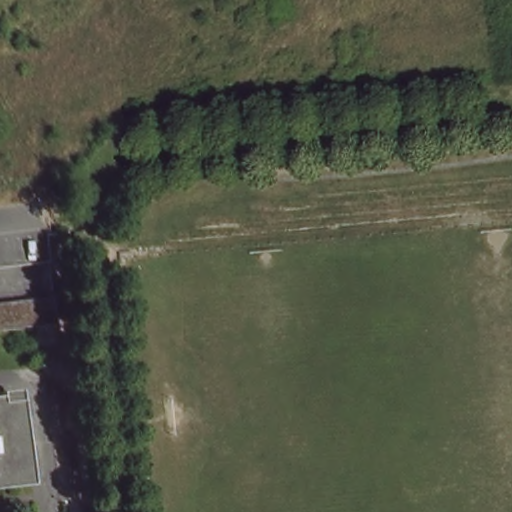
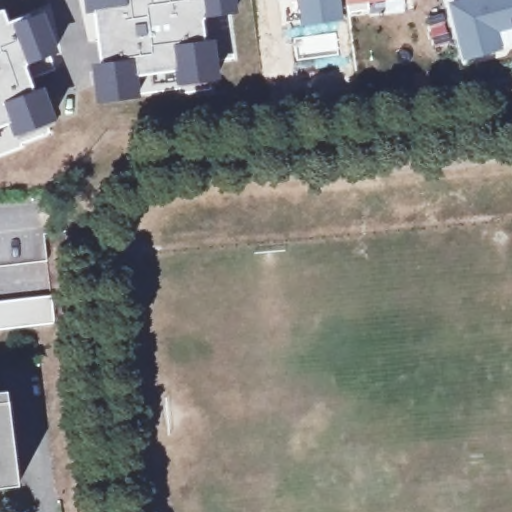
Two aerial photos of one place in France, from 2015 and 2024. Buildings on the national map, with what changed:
new [(202,14),(206,55),(215,54),(215,70),(176,75),(176,73),(133,77),(135,96),(98,101),(95,78),(103,78),(94,11),(88,11),(86,0),(233,0),(234,9),(202,14)]
new [(301,25),(298,0),(341,0),(343,19),(301,25)]
new [(347,12),(346,0),(367,0),(368,9),(347,12)]
new [(512,0),(512,25),(494,29),(499,46),(464,56),(451,4),(466,0),(512,0)]
new [(7,21),(39,9),(50,39),(45,41),(55,68),(30,76),(44,122),(16,131),(13,124),(0,129),(0,10),(2,10),(7,21)]
unchanged [(0,261),(0,234),(40,229),(43,256),(0,261)]
unchanged [(48,328),(0,334),(0,307),(44,301),(48,328)]
unchanged [(0,491),(0,406),(4,405),(13,489),(0,491)]

